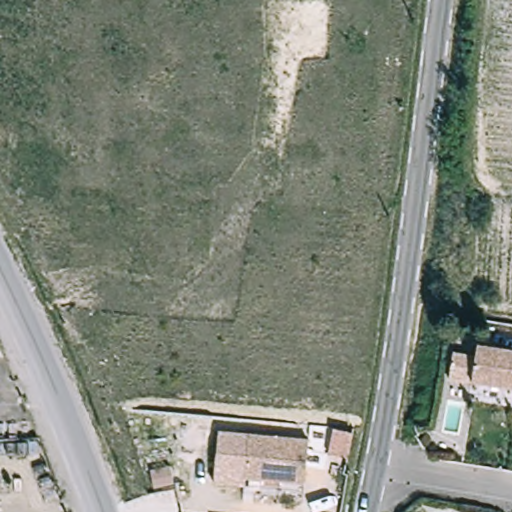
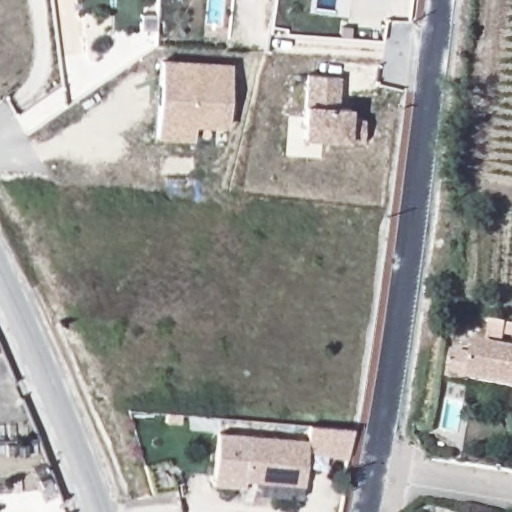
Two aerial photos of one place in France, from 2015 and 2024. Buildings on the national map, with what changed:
new [(161,59),(232,63),(227,128),(194,126),(193,140),(157,138),(161,59)]
new [(341,76),(338,106),(350,107),(350,116),(364,119),(363,142),(347,141),(302,138),(304,104),(306,74),(341,76)]
unchanged [(467,379),(474,344),(512,352),(512,388),(467,379)]
unchanged [(357,433),(352,458),(337,455),(341,430),(357,433)]
unchanged [(244,488),(214,485),(218,433),(248,436),(245,480),(244,488)]
unchanged [(305,484),(245,480),(248,436),(308,441),(305,484)]

